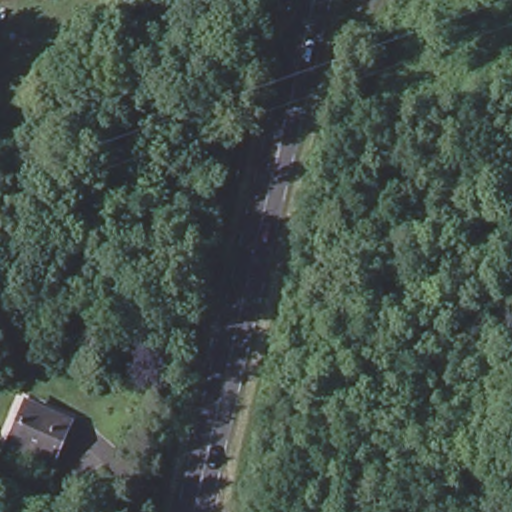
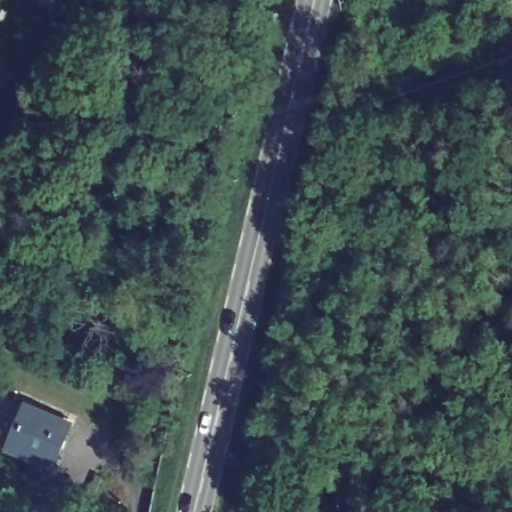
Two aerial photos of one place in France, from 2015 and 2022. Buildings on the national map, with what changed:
unchanged [(16,408),(65,429),(61,436),(48,467),(0,446),(11,418),(16,408)]

